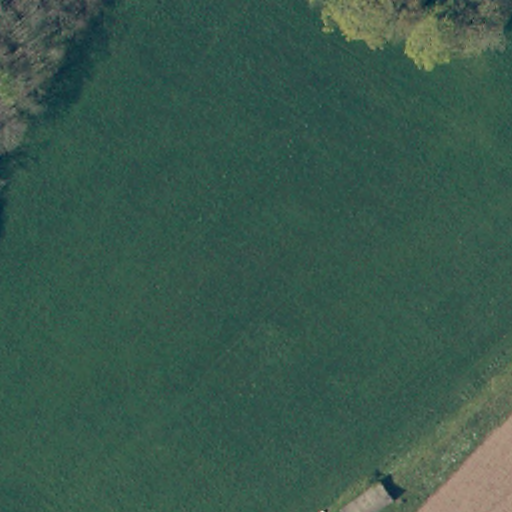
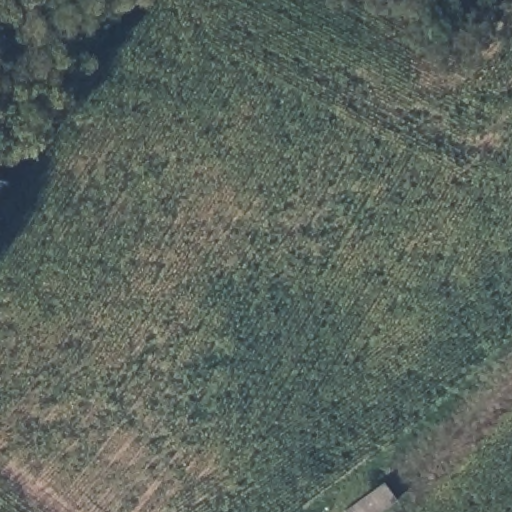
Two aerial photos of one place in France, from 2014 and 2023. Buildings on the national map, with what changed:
unchanged [(377,482),(392,499),(375,512),(338,512),(377,482)]

